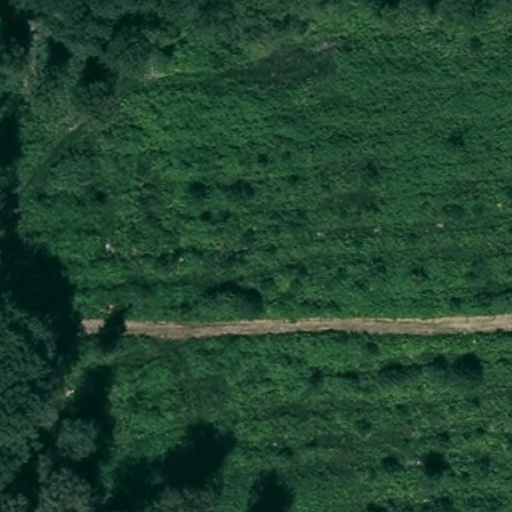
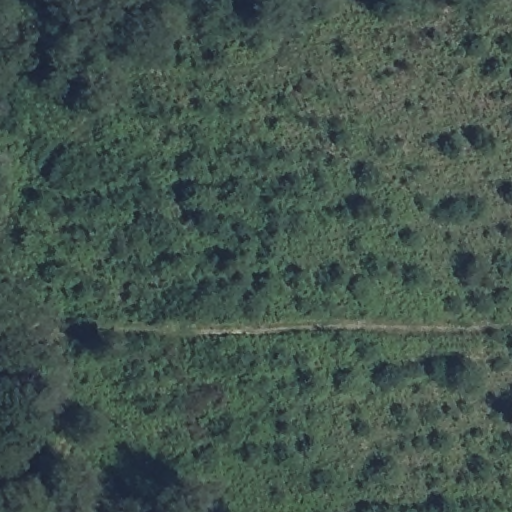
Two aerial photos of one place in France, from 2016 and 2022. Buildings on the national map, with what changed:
[]

